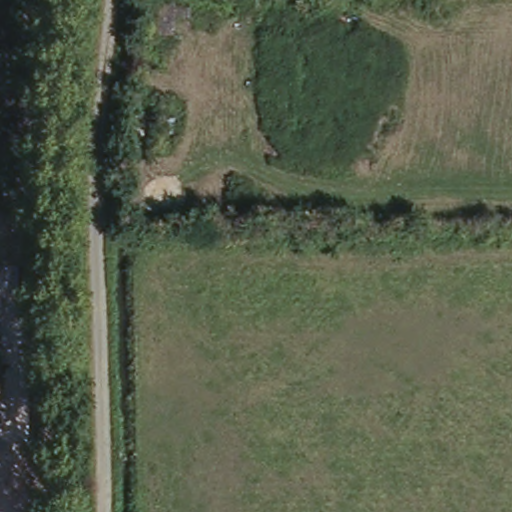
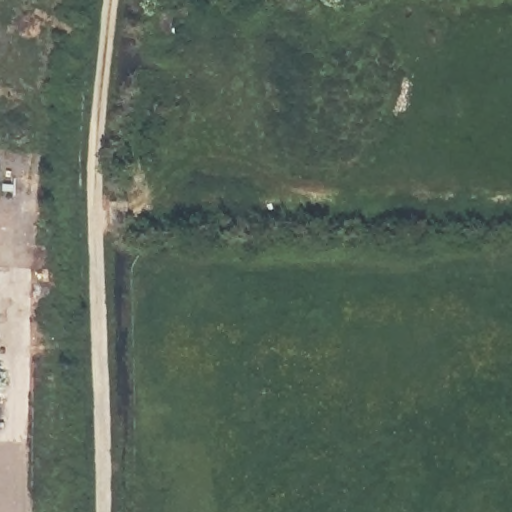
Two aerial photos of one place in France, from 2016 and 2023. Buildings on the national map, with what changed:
unchanged [(0,399),(0,364),(4,364),(0,399)]

